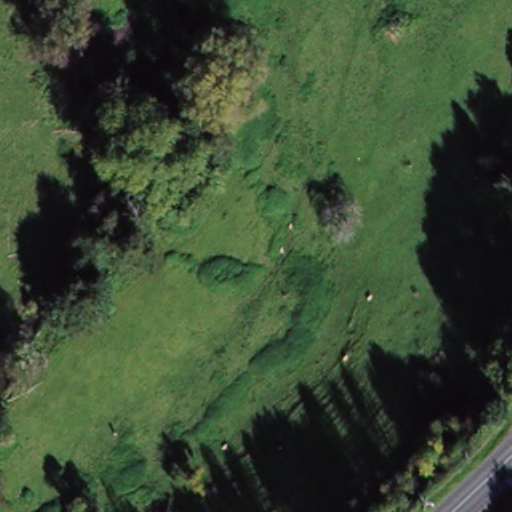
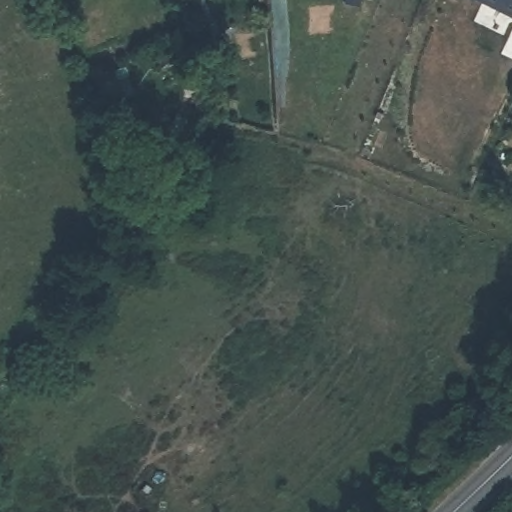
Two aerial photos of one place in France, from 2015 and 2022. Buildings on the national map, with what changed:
new [(486,0),(512,0),(512,12),(486,0)]
unchanged [(142,49),(126,56),(123,46),(139,40),(142,49)]

